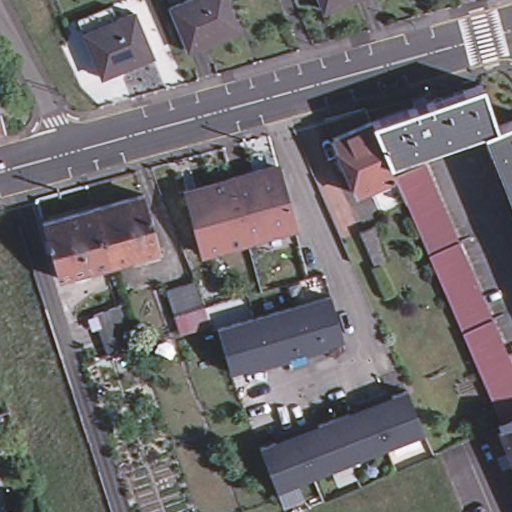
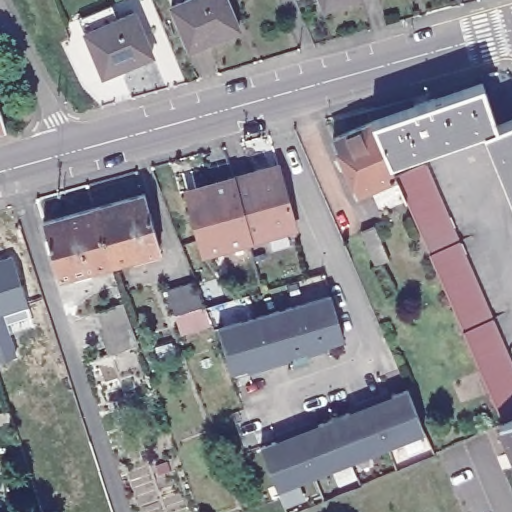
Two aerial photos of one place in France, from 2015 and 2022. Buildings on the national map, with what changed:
unchanged [(192,51),(175,6),(192,0),(230,0),(242,31),(192,51)]
unchanged [(320,0),(347,0),(324,9),(320,0)]
unchanged [(155,56),(122,69),(123,71),(106,79),(87,33),(82,19),(115,6),(120,19),(137,13),(155,56)]
unchanged [(388,166),(370,125),(413,110),(412,107),(425,103),(426,106),(480,88),(495,128),(481,133),(388,166)]
unchanged [(5,127),(4,126),(0,127),(0,106),(6,126),(5,127)]
unchanged [(481,133),(495,128),(512,122),(512,206),(481,133)]
unchanged [(390,177),(354,194),(329,141),(366,123),(390,177)]
unchanged [(229,176),(274,164),(292,227),(247,240),(200,252),(182,189),(229,176)]
unchanged [(505,426),(396,183),(422,171),(512,366),(512,423),(505,426)]
unchanged [(165,250),(116,263),(97,208),(147,195),(165,250)]
unchanged [(116,263),(60,278),(45,222),(97,208),(116,263)]
unchanged [(378,225),(392,259),(377,266),(363,232),(378,225)]
new [(0,262),(15,257),(22,280),(17,282),(20,289),(25,287),(31,306),(5,314),(19,357),(0,363),(0,262)]
unchanged [(177,317),(168,294),(194,283),(203,306),(207,305),(214,323),(215,325),(185,336),(177,317)]
unchanged [(287,361),(272,365),(255,370),(255,366),(234,371),(220,328),(258,317),(295,306),(333,295),(345,339),(323,345),(325,349),(309,354),(307,350),(285,356),(287,361)]
unchanged [(144,345),(116,354),(102,313),(130,303),(144,345)]
unchanged [(280,444),(279,439),(293,433),(310,427),(311,431),(332,422),(353,415),(352,410),(367,404),(380,399),(382,402),(403,394),(404,397),(421,437),(385,450),(350,464),(312,479),(275,494),(258,452),(280,444)]
unchanged [(500,430),(512,425),(512,457),(500,430)]

